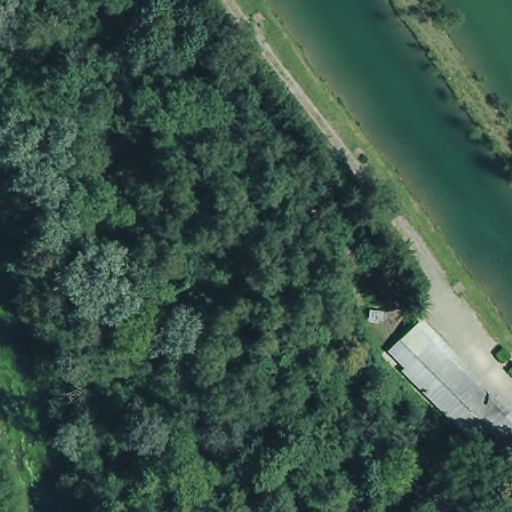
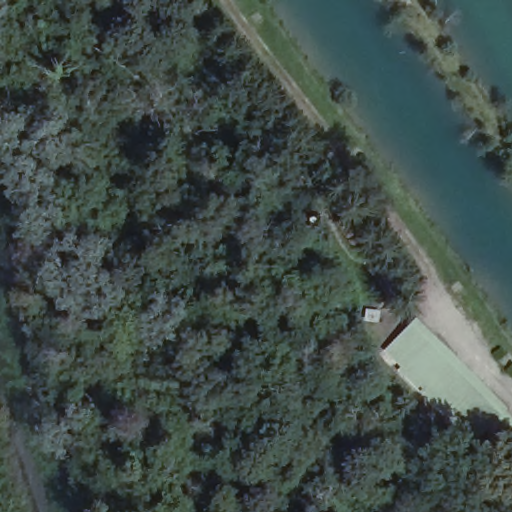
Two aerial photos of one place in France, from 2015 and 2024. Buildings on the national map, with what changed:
unchanged [(387,345),(438,298),(512,378),(512,448),(502,458),(387,345)]

